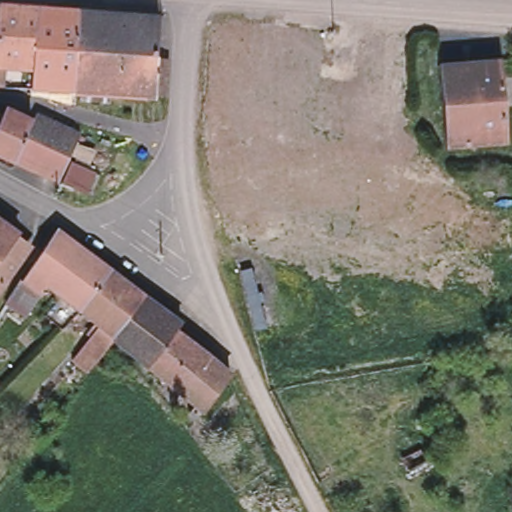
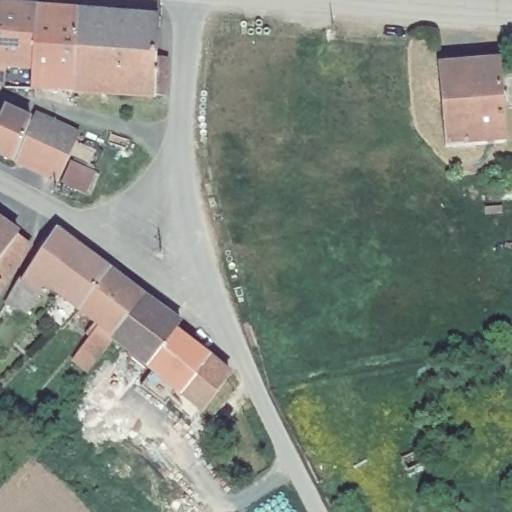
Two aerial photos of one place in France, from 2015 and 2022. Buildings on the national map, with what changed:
unchanged [(35,6),(30,67),(0,65),(0,3),(35,6)]
unchanged [(74,9),(72,89),(29,87),(30,67),(35,6),(74,9)]
unchanged [(108,11),(105,90),(72,89),(74,9),(108,11)]
unchanged [(163,93),(152,93),(105,90),(108,11),(156,14),(154,55),(166,56),(163,93)]
unchanged [(500,62),(507,145),(447,150),(439,67),(500,62)]
unchanged [(3,113),(29,125),(12,166),(0,160),(0,120),(3,113)]
unchanged [(31,118),(53,127),(32,175),(12,166),(29,125),(31,118)]
unchanged [(77,137),(55,185),(32,175),(53,127),(77,137)]
unchanged [(93,176),(83,196),(59,186),(68,166),(93,176)]
unchanged [(24,243),(24,249),(0,286),(0,226),(24,243)]
unchanged [(25,274),(52,233),(75,250),(106,274),(78,312),(45,288),(25,317),(3,302),(8,295),(18,280),(20,282),(25,274)]
unchanged [(79,349),(98,328),(79,314),(78,312),(106,274),(141,300),(177,326),(171,334),(144,370),(119,349),(113,339),(106,350),(96,362),(86,374),(69,362),(79,349)]
unchanged [(207,360),(177,396),(144,370),(171,334),(207,360)]
unchanged [(186,416),(191,408),(177,396),(207,360),(226,378),(199,414),(193,422),(186,416)]
unchanged [(422,446),(431,462),(407,473),(401,457),(422,446)]

